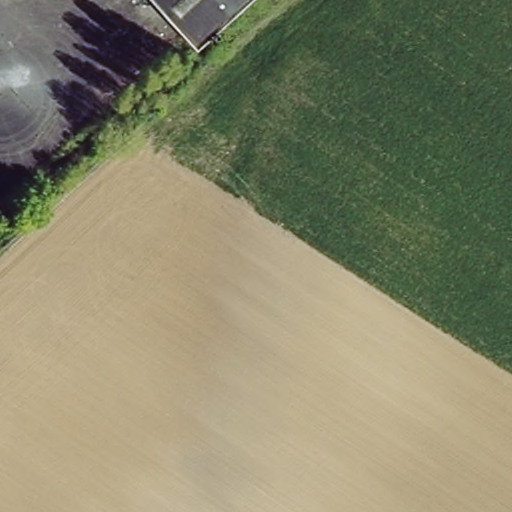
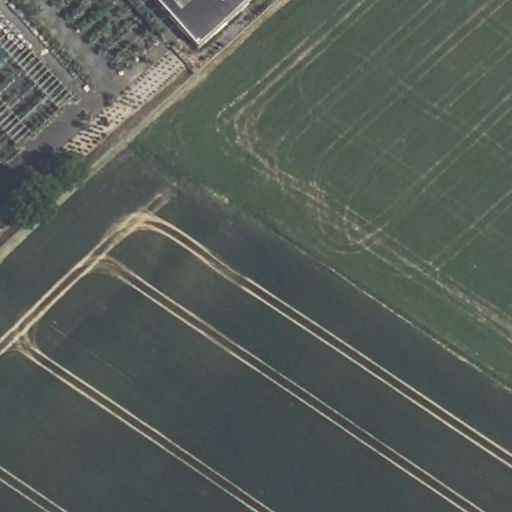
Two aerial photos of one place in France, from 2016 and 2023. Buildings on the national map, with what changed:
unchanged [(201,43),(160,0),(246,0),(201,43)]

